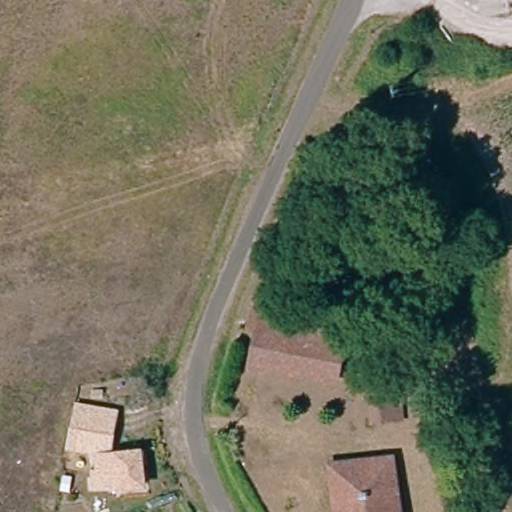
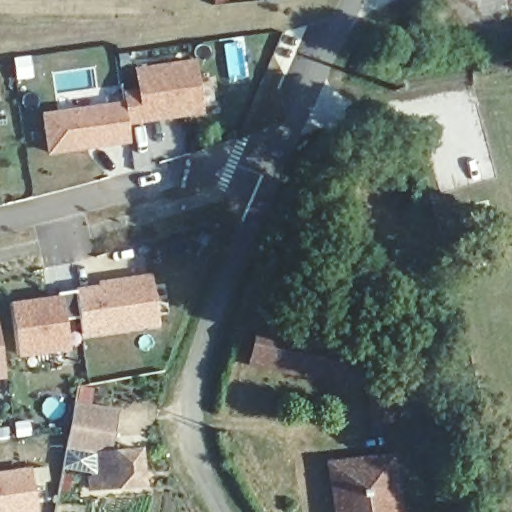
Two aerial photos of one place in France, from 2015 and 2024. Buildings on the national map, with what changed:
unchanged [(403,54),(397,64),(382,54),(386,44),(403,54)]
new [(145,93),(142,72),(197,64),(204,110),(150,117),(151,120),(131,122),(127,95),(145,93)]
new [(122,100),(131,144),(48,156),(41,113),(122,100)]
new [(77,294),(77,289),(98,285),(97,280),(152,272),(161,326),(84,338),(82,321),(77,294)]
new [(52,303),(52,307),(61,306),(60,296),(77,294),(82,321),(65,323),(68,351),(22,357),(15,308),(52,303)]
unchanged [(344,334),(335,386),(252,369),(257,336),(250,332),(254,315),(344,334)]
new [(5,378),(0,379),(0,341),(5,378)]
unchanged [(396,381),(403,420),(373,425),(371,385),(396,381)]
new [(95,388),(92,403),(120,410),(113,450),(143,447),(147,486),(118,489),(88,492),(87,475),(96,473),(95,453),(67,450),(79,386),(95,388)]
demolished [(123,395),(124,438),(84,440),(87,395),(123,395)]
demolished [(139,450),(144,486),(102,492),(100,455),(139,450)]
unchanged [(396,458),(402,512),(338,512),(332,467),(396,458)]
new [(31,466),(38,512),(0,512),(0,471),(31,466)]

